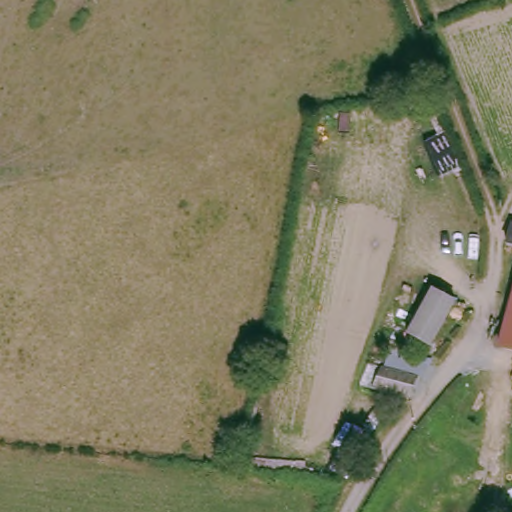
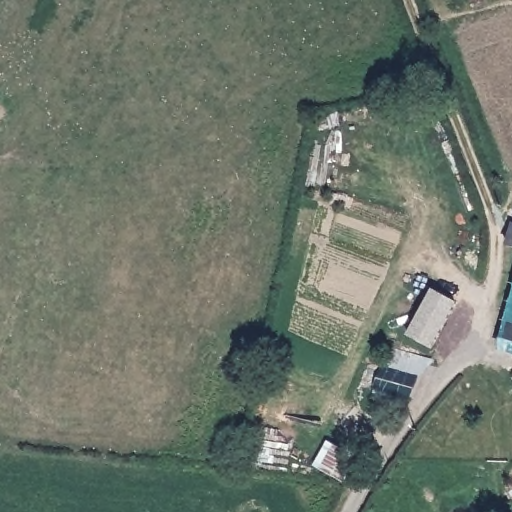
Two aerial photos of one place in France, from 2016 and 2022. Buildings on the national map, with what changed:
unchanged [(509,224),(512,225),(512,248),(504,244),(509,224)]
unchanged [(512,263),(512,344),(497,341),(512,263)]
unchanged [(412,336),(435,292),(460,302),(443,335),(437,347),(415,337),(412,336)]
unchanged [(375,362),(414,371),(410,390),(370,384),(375,362)]

